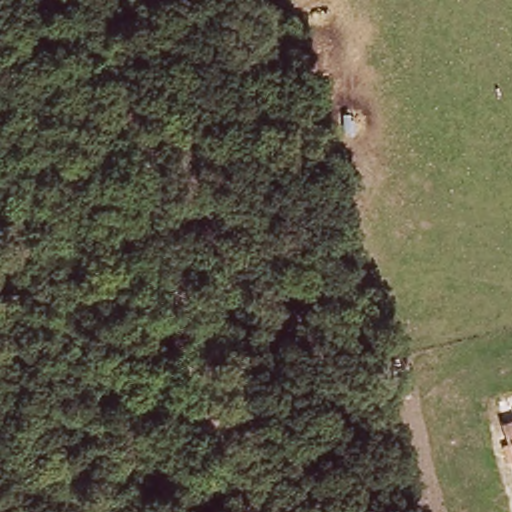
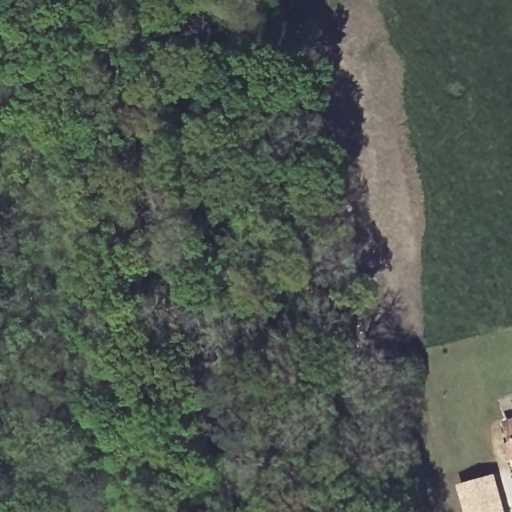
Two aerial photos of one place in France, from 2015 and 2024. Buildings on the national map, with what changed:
unchanged [(504,424),(512,421),(512,450),(504,424)]
new [(459,486),(496,474),(506,512),(466,512),(459,486)]

